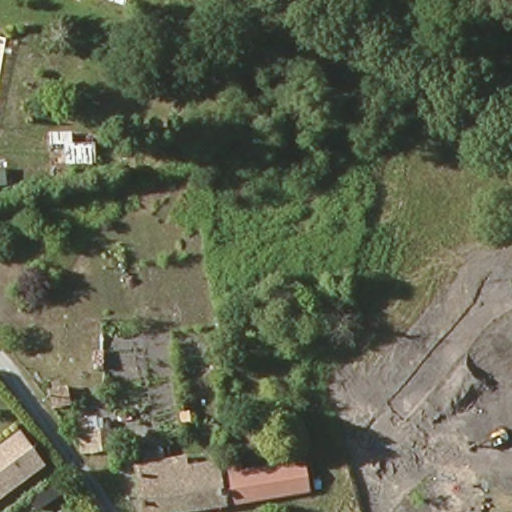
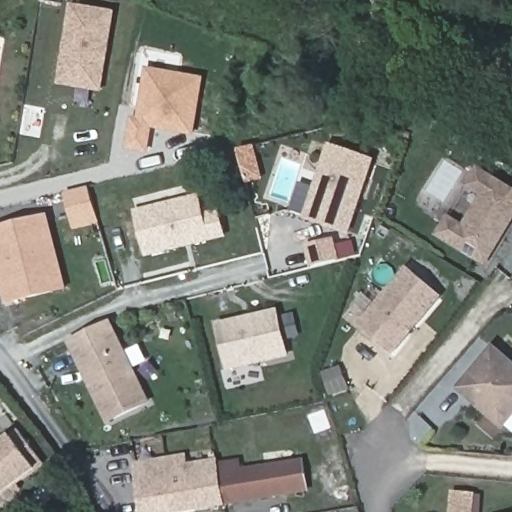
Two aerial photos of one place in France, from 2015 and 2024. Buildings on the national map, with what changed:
new [(102,94),(57,86),(70,4),(116,12),(102,94)]
new [(195,136),(155,129),(150,155),(124,149),(130,117),(137,118),(146,68),(206,77),(195,136)]
demolished [(56,164),(56,145),(50,143),(50,133),(74,133),(73,145),(95,144),(95,164),(56,164)]
new [(292,210),(301,184),(313,188),(329,144),(377,161),(350,236),(302,220),(304,215),(292,210)]
new [(465,188),(478,167),(512,189),(512,225),(485,268),(435,236),(448,216),(462,225),(480,197),(465,188)]
new [(90,188),(98,222),(73,231),(64,194),(90,188)]
new [(224,223),(227,238),(145,258),(134,212),(201,195),(210,226),(224,223)]
new [(61,287),(5,301),(0,280),(0,228),(44,217),(61,287)]
new [(336,246),(352,242),(356,257),(310,268),(304,246),(335,239),(336,246)]
new [(391,358),(357,326),(407,267),(443,298),(391,358)]
new [(273,310),(283,351),(226,365),(217,324),(273,310)]
new [(108,422),(74,351),(70,344),(109,323),(112,332),(147,404),(108,422)]
new [(493,346),(512,362),(512,421),(502,432),(455,390),(493,346)]
demolished [(105,368),(105,357),(116,356),(117,367),(105,368)]
demolished [(74,399),(71,384),(89,382),(90,397),(74,399)]
demolished [(111,454),(83,458),(77,417),(105,413),(111,454)]
unchanged [(0,448),(21,432),(45,465),(0,497),(0,448)]
unchanged [(187,463),(190,483),(221,477),(222,480),(303,467),(308,494),(204,512),(145,512),(139,472),(187,463)]
demolished [(408,512),(386,512),(386,500),(409,501),(408,512)]

